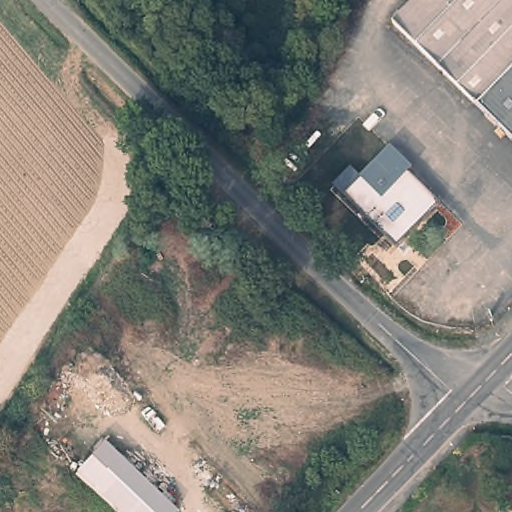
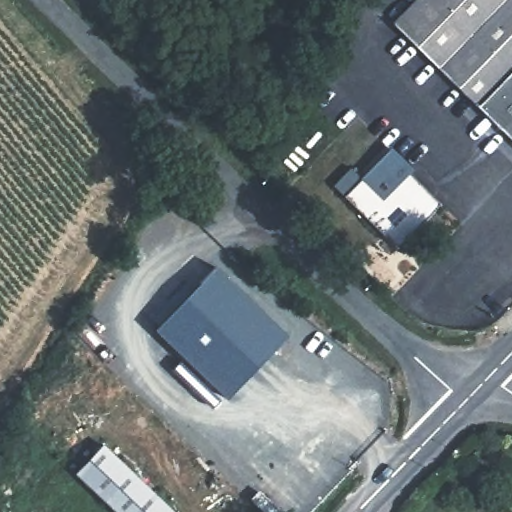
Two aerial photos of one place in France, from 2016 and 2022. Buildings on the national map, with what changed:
unchanged [(416,0),(512,0),(512,136),(394,22),(416,0)]
unchanged [(343,195),(334,185),(351,167),(360,178),(391,147),(413,169),(406,175),(437,205),(396,246),(343,195)]
new [(215,265),(287,334),(227,398),(154,329),(215,265)]
unchanged [(102,446),(171,512),(113,512),(74,474),(102,446)]

